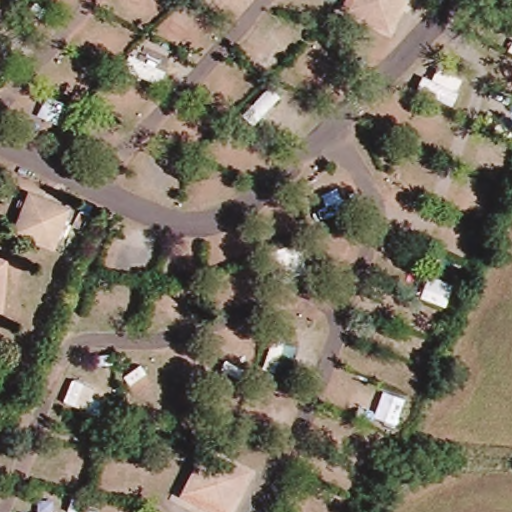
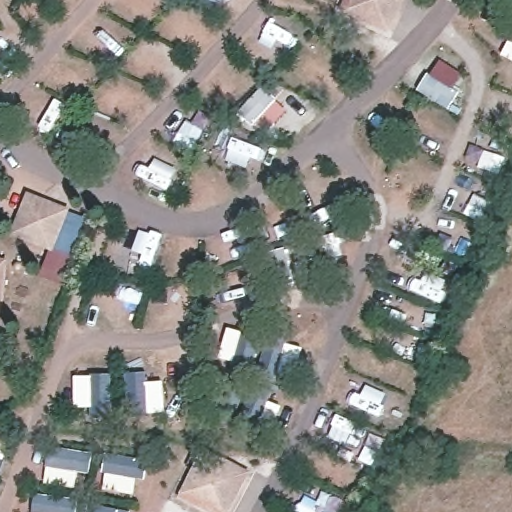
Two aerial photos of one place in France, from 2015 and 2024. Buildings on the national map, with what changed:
unchanged [(345,12),(351,0),(407,0),(392,35),(345,12)]
unchanged [(12,232),(27,192),(67,207),(52,247),(12,232)]
unchanged [(0,316),(0,263),(6,264),(2,317),(0,316)]
unchanged [(207,465),(245,482),(231,512),(211,512),(187,501),(207,465)]

